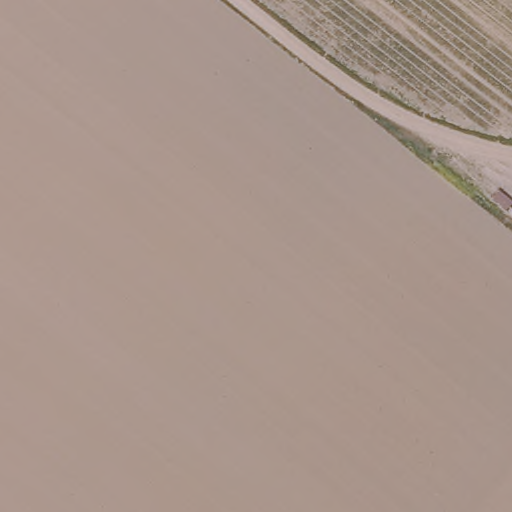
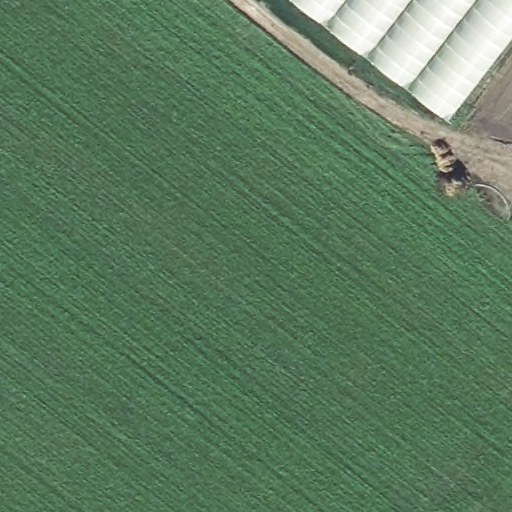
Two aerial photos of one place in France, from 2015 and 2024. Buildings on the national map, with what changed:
new [(296,0),(512,0),(512,41),(451,120),(296,0)]

